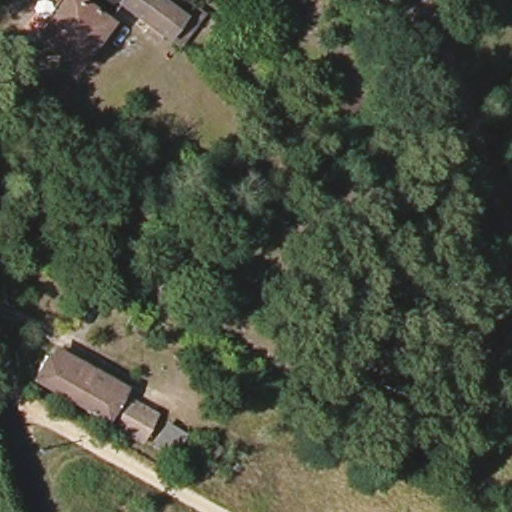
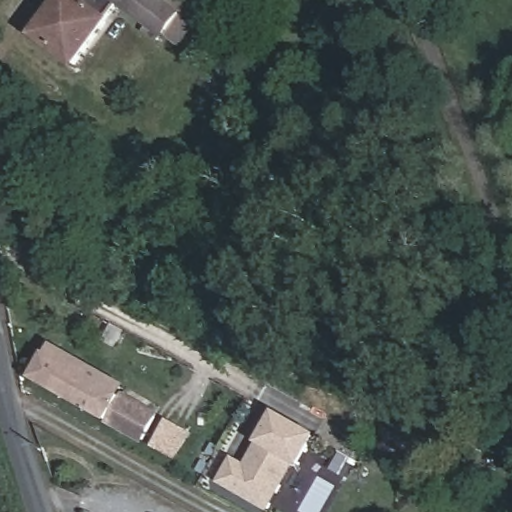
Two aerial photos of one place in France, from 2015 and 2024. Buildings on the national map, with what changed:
unchanged [(166,7),(181,20),(166,40),(121,9),(74,69),(39,44),(26,35),(51,0),(68,0),(70,1),(79,8),(85,0),(170,0),(166,7)]
unchanged [(146,440),(111,422),(36,382),(49,358),(54,349),(129,389),(124,398),(124,399),(159,418),(146,440)]
new [(229,459),(242,466),(272,414),(310,436),(295,463),(290,460),(263,507),(217,480),(229,459)]
new [(167,421),(184,431),(171,454),(154,444),(167,421)]

